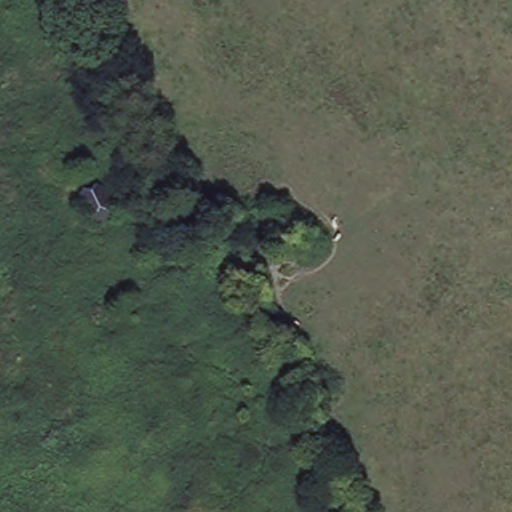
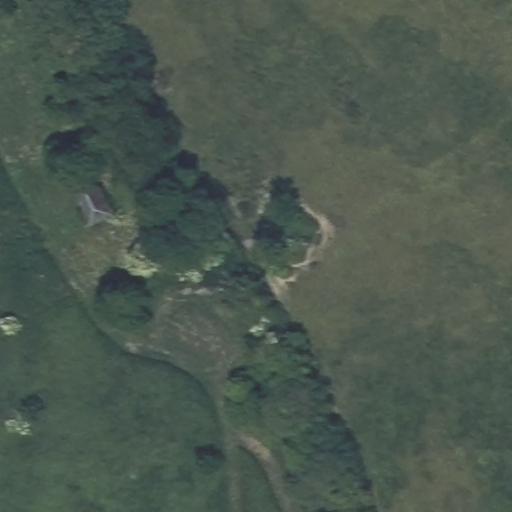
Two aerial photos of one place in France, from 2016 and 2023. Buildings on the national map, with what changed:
unchanged [(116,214),(94,225),(81,197),(103,186),(116,214)]

